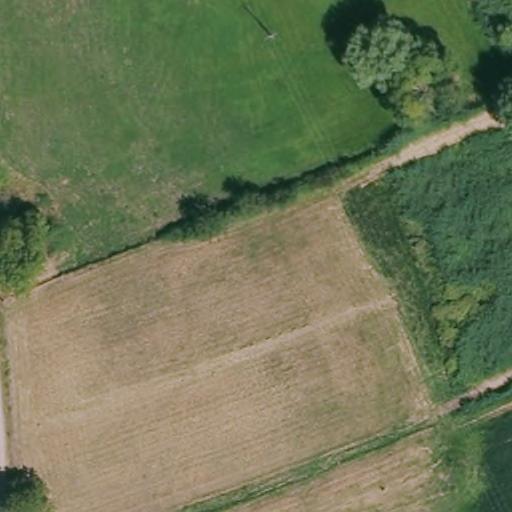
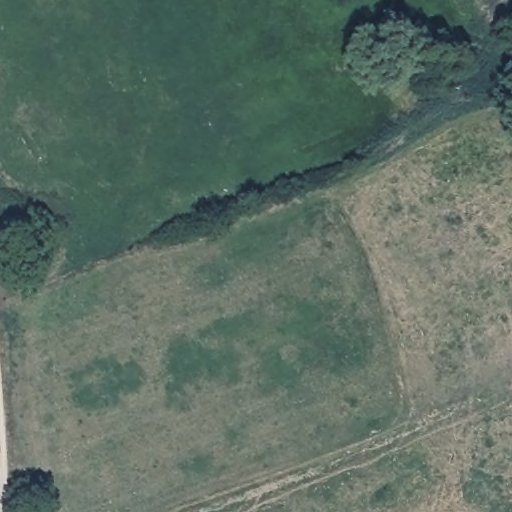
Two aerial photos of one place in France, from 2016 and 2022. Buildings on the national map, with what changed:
unchanged [(53,265),(30,273),(10,222),(32,216),(53,265)]

